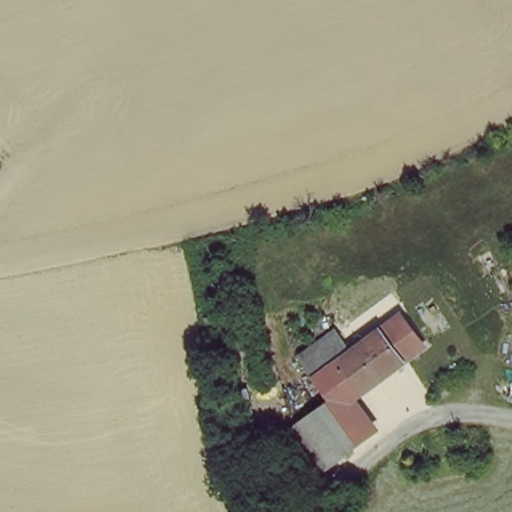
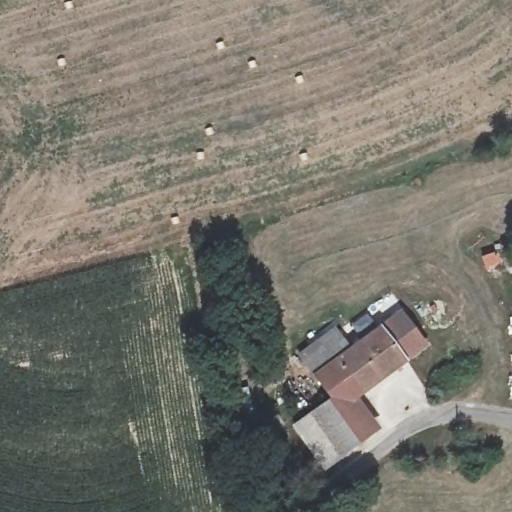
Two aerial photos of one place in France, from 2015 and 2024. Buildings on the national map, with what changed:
unchanged [(343,452),(320,419),(316,414),(333,403),(315,378),(351,351),(357,346),(421,299),(444,333),(349,399),(371,432),(343,452)]
unchanged [(315,378),(296,356),(335,328),(351,351),(315,378)]
unchanged [(320,419),(343,452),(316,471),(290,434),(316,414),(320,419)]

